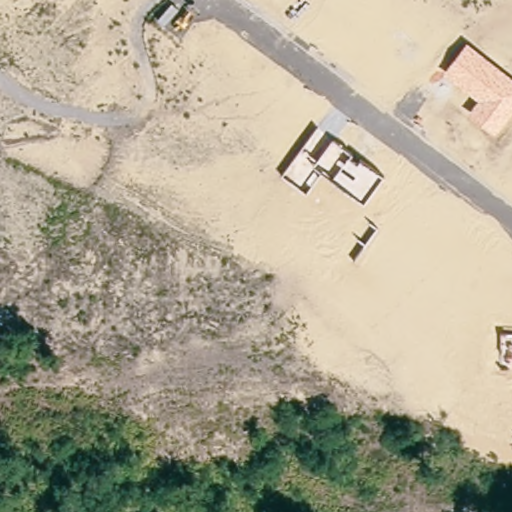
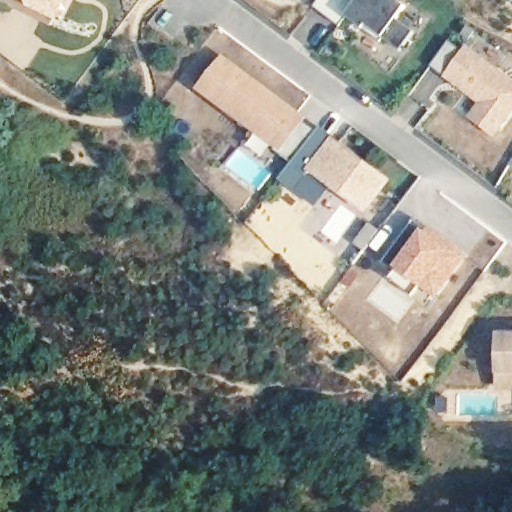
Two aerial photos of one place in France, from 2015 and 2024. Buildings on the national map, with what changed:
new [(25,0),(69,0),(59,22),(27,7),(25,0)]
new [(338,25),(312,5),(316,0),(399,0),(406,5),(397,17),(415,31),(400,50),(382,36),(380,40),(362,27),(346,15),(338,25)]
unchanged [(512,78),(512,116),(497,138),(466,117),(477,102),(443,76),(467,43),(512,78)]
new [(307,115),(303,119),(316,129),(320,124),(391,179),(366,213),(329,186),(316,204),(280,179),(293,159),(197,89),(223,53),(307,115)]
new [(381,262),(414,217),(427,228),(450,244),(464,255),(435,294),(421,283),(412,295),(388,277),(393,270),(381,262)]
new [(512,331),(512,388),(499,388),(498,371),(498,331),(512,331)]

